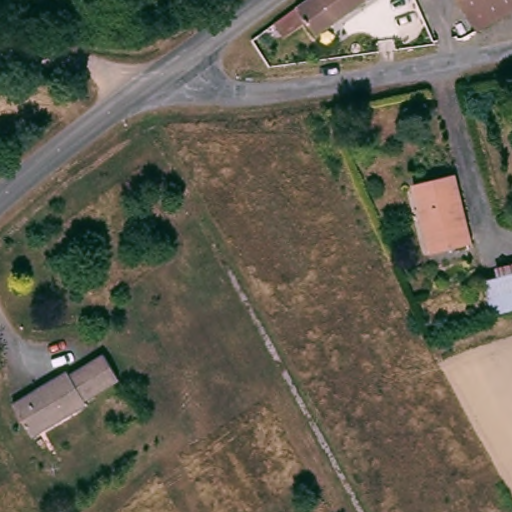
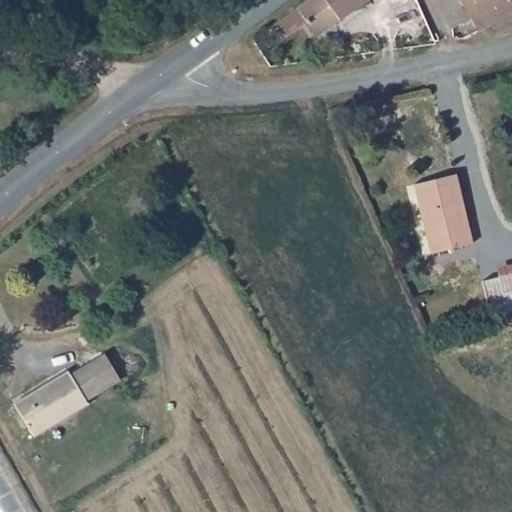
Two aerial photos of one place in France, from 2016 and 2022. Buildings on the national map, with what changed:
unchanged [(301,7),(311,0),(366,0),(320,32),(312,21),(292,34),(282,21),(301,7)]
unchanged [(465,0),(512,0),(512,13),(483,30),(465,0)]
unchanged [(431,251),(415,185),(460,172),(475,241),(431,251)]
unchanged [(492,315),(487,280),(500,277),(499,266),(512,263),(512,311),(492,315)]
unchanged [(122,384),(39,433),(19,401),(105,353),(122,384)]
new [(0,446),(38,512),(0,512),(0,446)]

